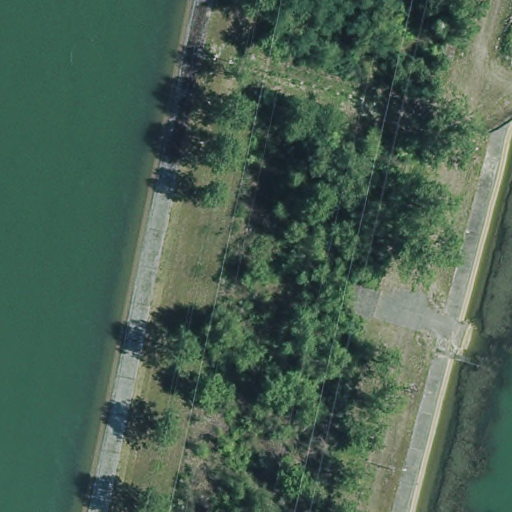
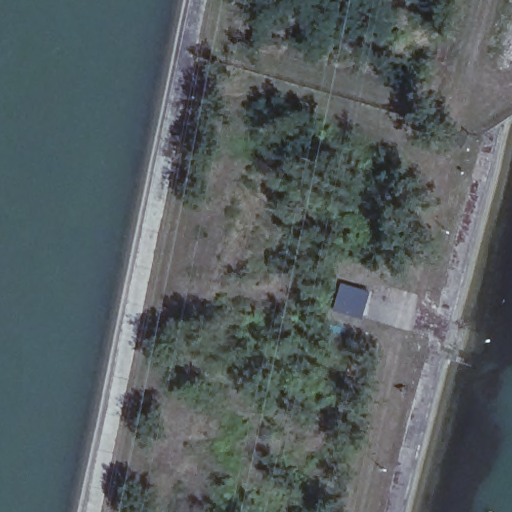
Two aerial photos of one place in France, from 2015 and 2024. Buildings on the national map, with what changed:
unchanged [(355,278),(375,281),(369,313),(348,310),(355,278)]

